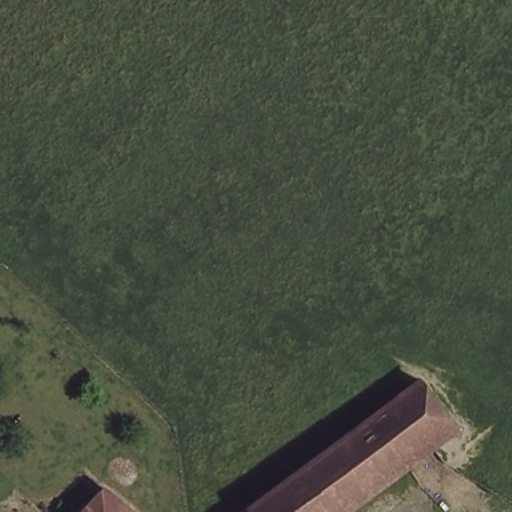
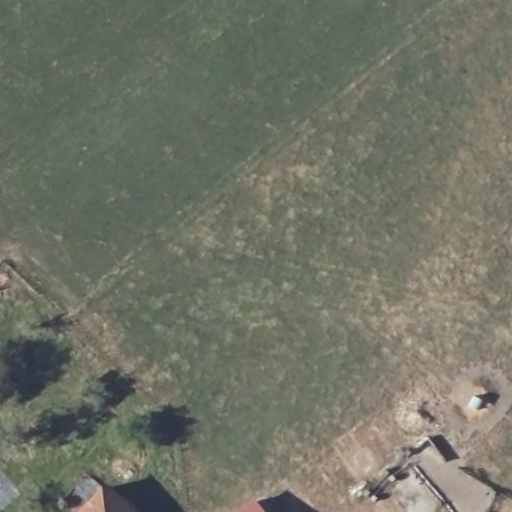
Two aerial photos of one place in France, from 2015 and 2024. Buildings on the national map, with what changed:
demolished [(452,423),(333,512),(259,512),(254,506),(255,506),(405,395),(422,382),(452,423)]
unchanged [(135,512),(88,512),(110,489),(135,512)]
unchanged [(259,512),(246,512),(254,506),(259,512)]

